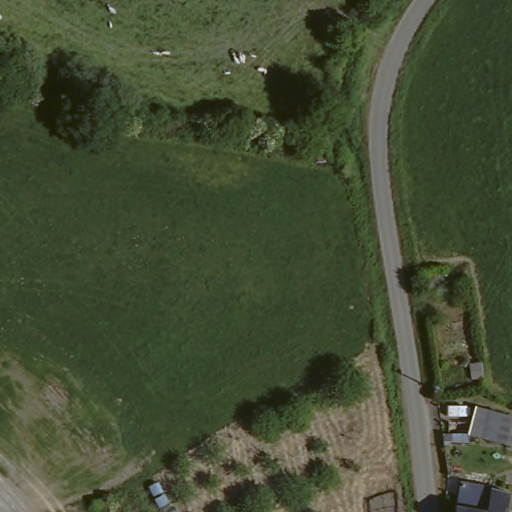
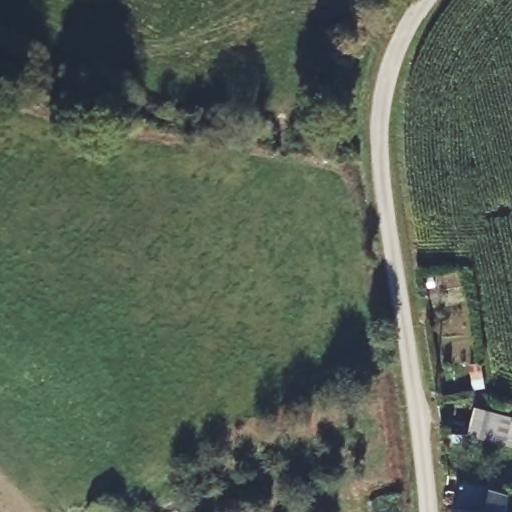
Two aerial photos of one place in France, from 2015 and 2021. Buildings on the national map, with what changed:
unchanged [(512,425),(512,426),(511,427),(512,427),(512,453),(467,430),(479,408),(512,425)]
unchanged [(459,503),(464,479),(496,477),(494,484),(489,511),(495,512),(457,512),(459,503)]
unchanged [(501,489),(512,492),(512,512),(495,512),(501,489)]

